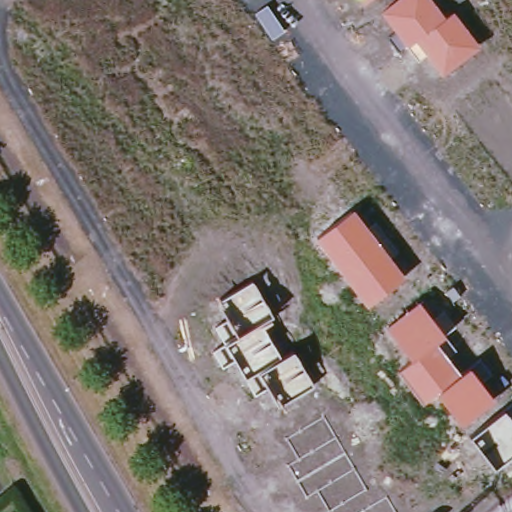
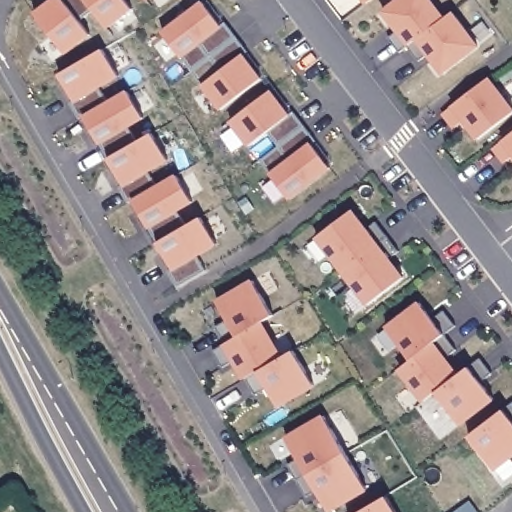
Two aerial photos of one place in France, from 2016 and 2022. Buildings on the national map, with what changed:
new [(127,0),(133,8),(108,27),(93,9),(78,19),(91,35),(66,53),(36,11),(52,0),(127,0)]
new [(205,0),(223,24),(227,21),(249,50),(246,53),(264,77),(223,107),(164,30),(205,0)]
unchanged [(359,0),(368,0),(363,4),(359,0)]
unchanged [(454,12),(481,46),(443,73),(426,53),(419,58),(408,45),(379,9),(392,0),(432,0),(447,18),(454,12)]
new [(119,76),(99,87),(108,101),(126,91),(143,118),(128,128),(135,143),(153,133),(168,160),(149,172),(157,185),(176,174),(193,202),(177,212),(186,225),(201,216),(216,243),(196,256),(205,269),(177,285),(169,273),(173,269),(61,75),(103,49),(119,76)]
new [(490,77),(512,106),(512,114),(480,138),(466,119),(456,127),(444,112),(490,77)]
new [(273,89),(291,113),(295,110),(318,139),(314,142),(331,166),(291,197),(262,158),(280,145),(269,131),(251,144),(233,119),(273,89)]
new [(512,134),(512,157),(506,161),(495,147),(512,134)]
unchanged [(404,275),(366,306),(316,239),(354,210),(404,275)]
unchanged [(253,280),(274,318),(270,320),(271,323),(264,328),(281,359),(294,352),(313,385),(279,405),(268,386),(254,396),(233,359),(222,366),(212,348),(224,342),(216,323),(226,317),(216,300),(253,280)]
unchanged [(431,315),(444,306),(458,325),(444,335),(457,351),(448,357),(461,373),(469,366),(494,398),(463,423),(437,390),(421,404),(395,371),(409,360),(385,325),(421,300),(431,315)]
unchanged [(512,420),(512,454),(496,465),(470,433),(504,408),(512,420)]
new [(326,415),(346,452),(299,480),(289,464),(299,458),(288,438),(326,415)]
new [(346,452),(368,489),(330,511),(318,490),(308,497),(299,480),(346,452)]
new [(388,495),(398,512),(360,512),(388,495)]

